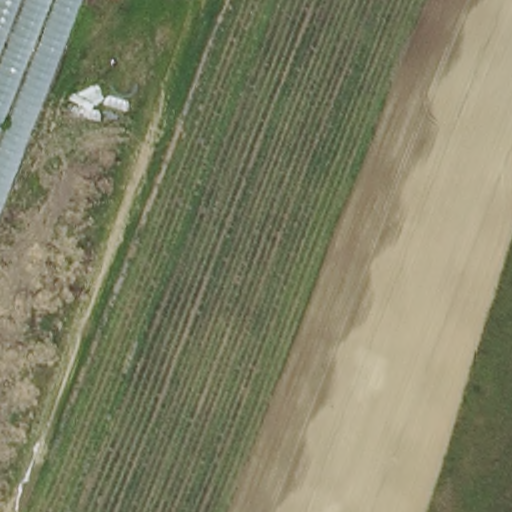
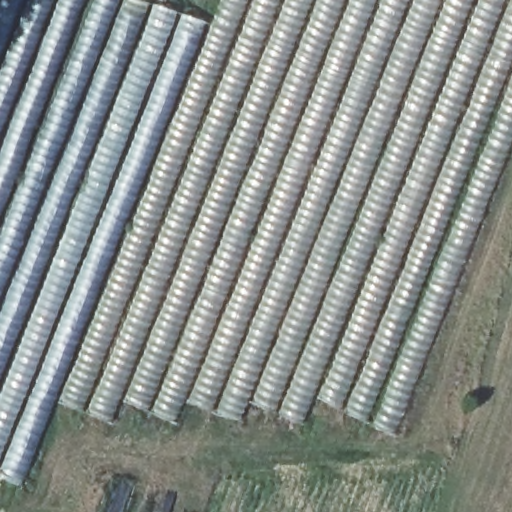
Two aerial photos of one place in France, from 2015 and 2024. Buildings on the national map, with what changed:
new [(222,0),(512,0),(512,142),(396,436),(313,398),(302,425),(248,402),(239,425),(185,401),(175,425),(119,400),(110,425),(55,402),(21,490),(0,481),(0,0),(141,0),(212,25),(222,0)]

